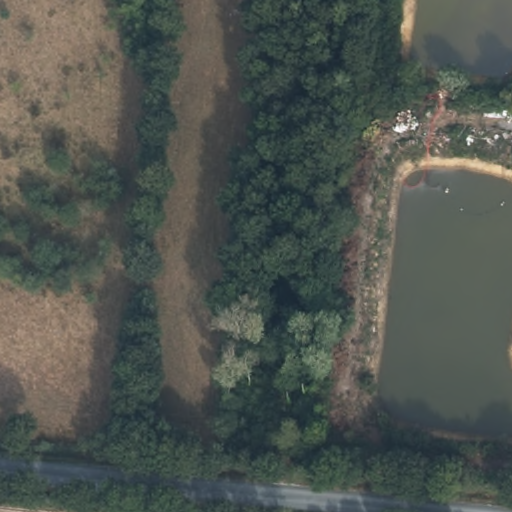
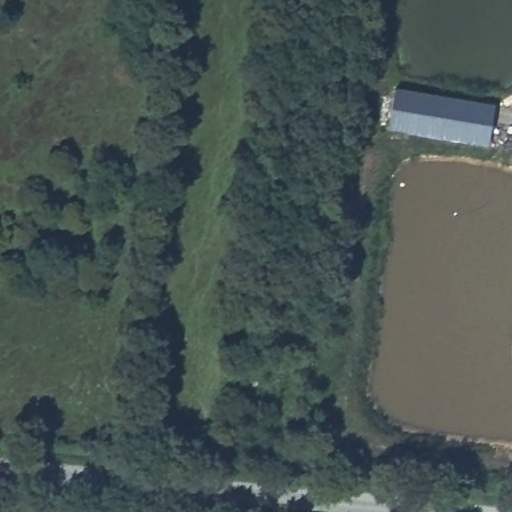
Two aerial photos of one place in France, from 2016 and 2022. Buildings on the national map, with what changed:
new [(494,104),(487,145),(387,129),(394,86),(494,104)]

